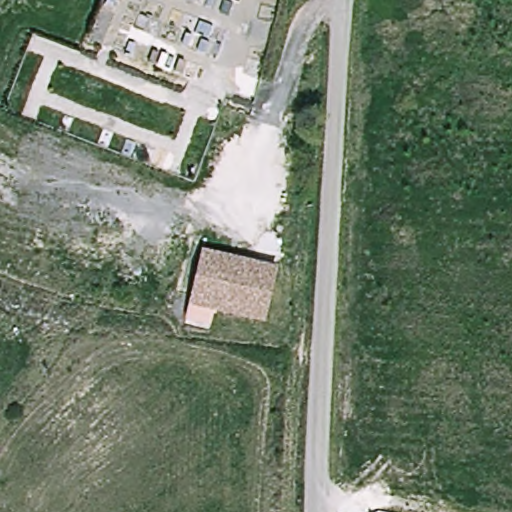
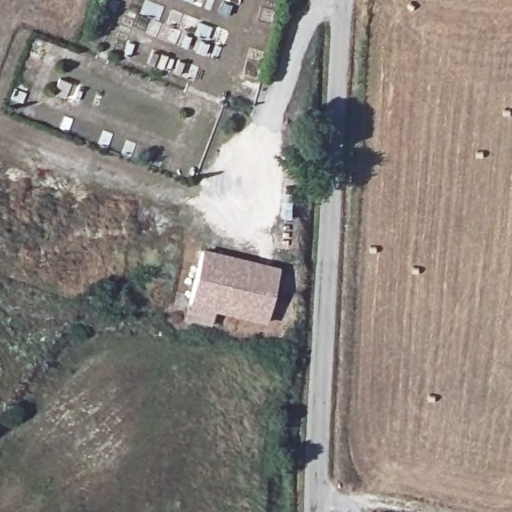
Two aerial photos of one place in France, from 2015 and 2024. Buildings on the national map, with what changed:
unchanged [(208,257),(281,275),(268,327),(196,309),(208,257)]

